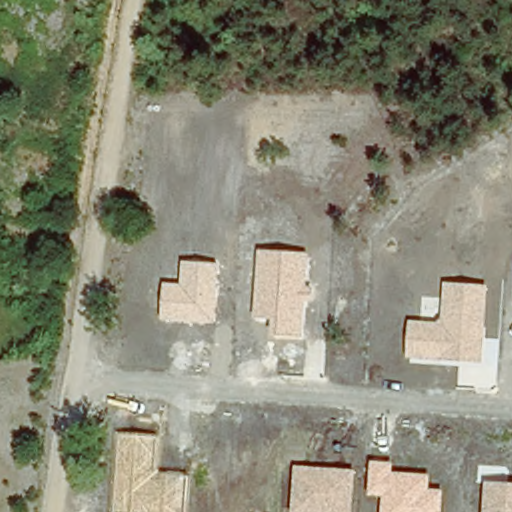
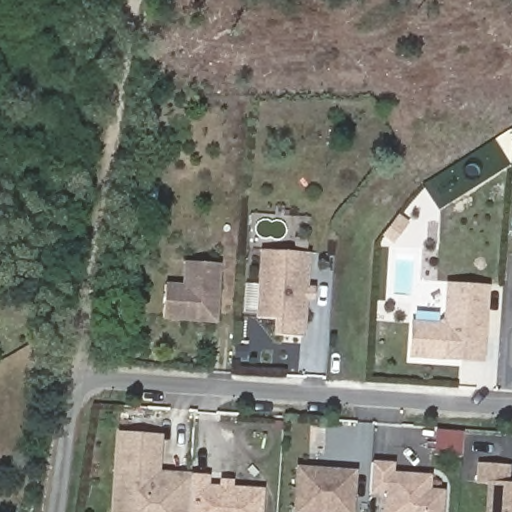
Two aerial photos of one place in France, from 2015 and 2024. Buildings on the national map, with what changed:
unchanged [(304,337),(272,336),(272,320),(255,320),(258,251),(310,252),(308,287),(314,287),(313,302),(306,302),(304,337)]
unchanged [(216,323),(162,320),(165,283),(181,284),(183,263),(220,263),(216,323)]
unchanged [(483,362),(408,358),(410,321),(436,323),(442,317),(445,283),(490,285),(483,362)]
unchanged [(189,512),(111,512),(117,434),(161,433),(159,472),(190,472),(189,512)]
unchanged [(430,473),(430,490),(443,490),(442,512),(382,512),(383,496),(368,495),(370,461),(393,462),(392,472),(430,473)]
unchanged [(292,512),(295,466),(356,470),(353,512),(292,512)]
new [(207,475),(207,485),(217,486),(217,480),(231,481),(231,487),(262,489),(261,512),(189,512),(190,473),(207,475)]
unchanged [(512,483),(512,512),(483,512),(485,481),(512,483)]

